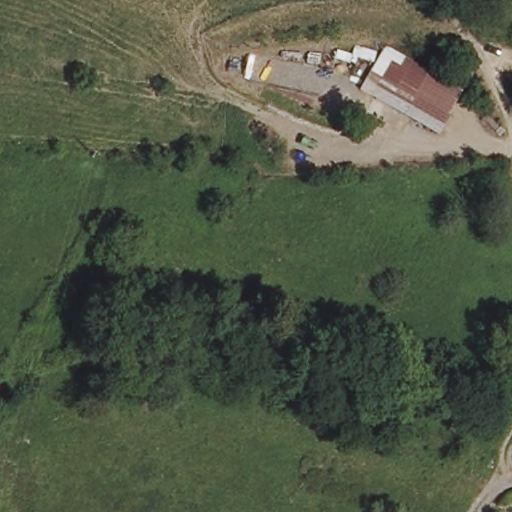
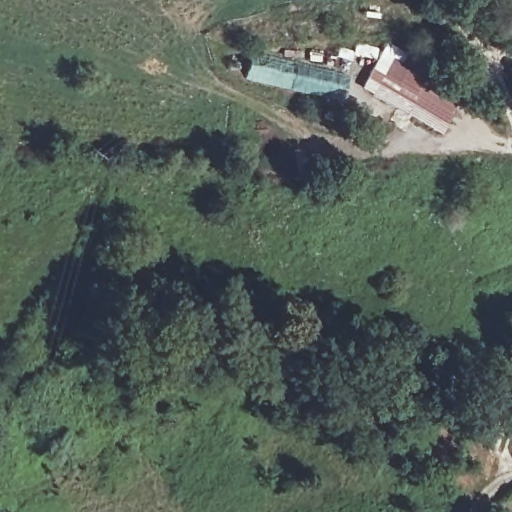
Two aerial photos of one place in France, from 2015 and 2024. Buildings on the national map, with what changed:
unchanged [(400,52),(462,89),(437,131),(375,94),(400,52)]

